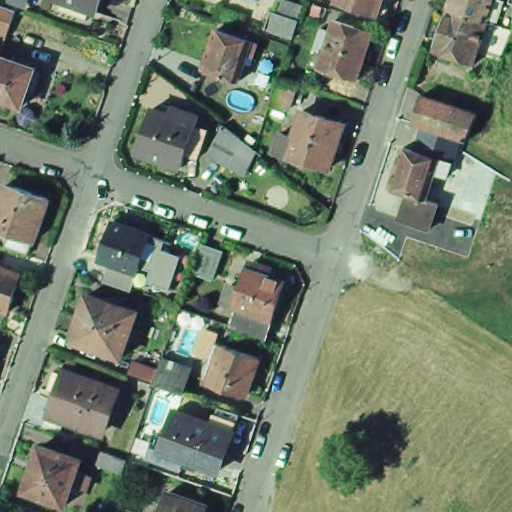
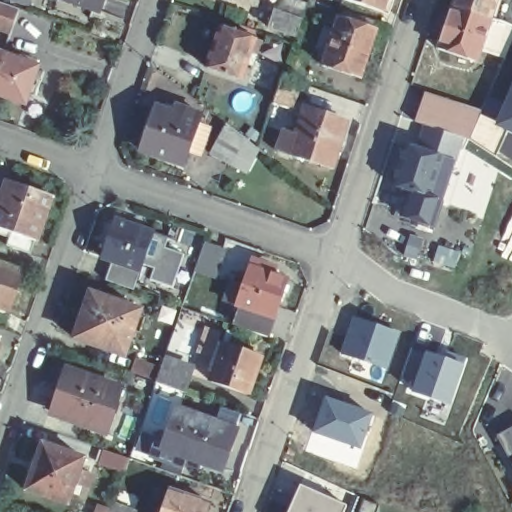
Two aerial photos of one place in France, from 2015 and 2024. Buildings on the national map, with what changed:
unchanged [(0,0),(5,0),(9,1),(20,5),(12,29),(0,25),(0,0)]
unchanged [(69,0),(105,0),(101,11),(69,0)]
unchanged [(393,16),(348,0),(395,0),(398,1),(393,16)]
unchanged [(495,16),(492,27),(481,59),(443,46),(454,15),(457,4),(459,0),(507,0),(512,1),(512,50),(511,52),(498,47),(505,31),(507,25),(509,20),(495,16)]
unchanged [(269,29),(275,10),(304,20),(298,39),(269,29)]
unchanged [(327,62),(342,15),(381,29),(365,75),(327,62)]
unchanged [(206,65),(220,24),(256,37),(262,39),(257,51),(252,50),(242,76),(206,65)]
unchanged [(0,66),(0,54),(4,55),(0,66)]
unchanged [(33,86),(27,105),(0,96),(0,66),(4,55),(39,67),(35,79),(42,80),(39,88),(33,86)]
new [(512,83),(512,133),(493,125),(512,83)]
unchanged [(303,109),(293,105),(289,114),(276,109),(284,85),(308,93),(303,109)]
unchanged [(422,143),(427,127),(420,125),(429,97),(486,115),(485,116),(474,142),(456,136),(452,152),(422,143)]
unchanged [(206,129),(212,130),(209,139),(204,137),(194,167),(150,152),(164,109),(182,115),(184,109),(192,111),(210,117),(206,129)]
unchanged [(292,161),(291,164),(284,161),(290,143),(295,144),(305,116),(345,129),(330,175),(292,161)]
unchanged [(228,124),(264,150),(249,177),(211,155),(228,124)]
unchanged [(406,219),(414,194),(398,189),(412,149),(445,160),(450,161),(446,174),(442,172),(433,200),(445,204),(443,210),(441,215),(442,215),(437,229),(435,228),(406,219)]
unchanged [(14,234),(7,231),(10,225),(0,222),(0,204),(4,205),(12,179),(54,194),(40,236),(34,250),(11,241),(14,234)]
unchanged [(160,272),(144,266),(107,254),(119,216),(157,230),(152,241),(170,246),(160,272)]
unchanged [(222,245),(212,270),(195,265),(202,240),(222,245)]
unchanged [(0,263),(9,266),(7,270),(23,275),(10,311),(0,307),(0,263)]
unchanged [(249,312),(246,311),(236,307),(242,290),(252,293),(259,273),(260,274),(262,267),(280,272),(277,280),(295,285),(283,324),(276,343),(243,331),(249,312)]
unchanged [(95,295),(113,301),(114,297),(128,302),(127,306),(145,312),(129,357),(80,340),(95,295)]
new [(401,334),(387,373),(343,355),(354,319),(401,334)]
unchanged [(257,395),(220,382),(227,361),(222,360),(227,343),(232,345),(269,357),(257,395)]
new [(413,345),(442,355),(445,350),(467,358),(449,405),(398,382),(413,345)]
unchanged [(0,352),(0,346),(2,346),(0,352)]
unchanged [(187,393),(160,383),(160,381),(137,372),(140,361),(165,369),(167,362),(196,371),(187,393)]
unchanged [(119,436),(67,420),(75,401),(67,398),(75,375),(83,378),(90,380),(134,395),(119,436)]
new [(372,416),(360,451),(317,435),(327,401),(372,416)]
unchanged [(230,475),(211,468),(170,455),(184,417),(224,431),(242,438),(230,475)]
new [(497,436),(512,429),(512,463),(497,436)]
unchanged [(96,461),(102,445),(129,454),(124,470),(96,461)]
unchanged [(37,491),(52,446),(93,461),(77,505),(37,491)]
new [(300,484),(347,505),(343,512),(287,512),(300,484)]
unchanged [(175,488),(212,500),(209,512),(167,512),(175,488)]

